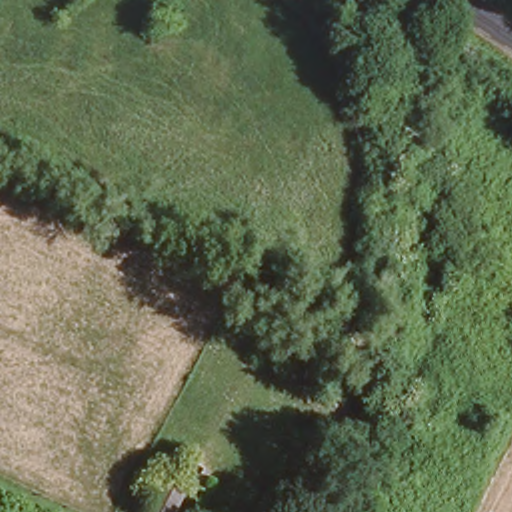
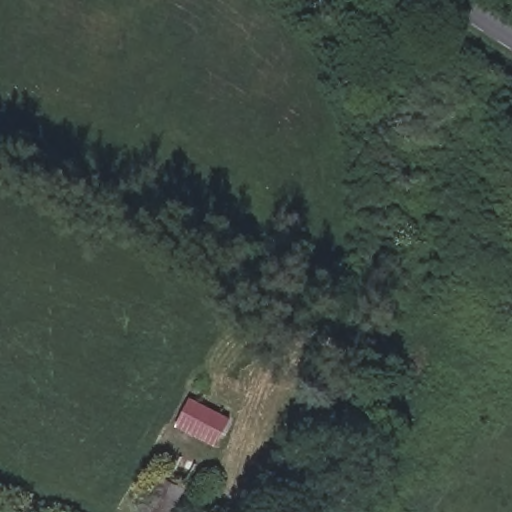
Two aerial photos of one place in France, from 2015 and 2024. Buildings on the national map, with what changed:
new [(232,419),(216,449),(177,427),(192,398),(232,419)]
unchanged [(167,475),(191,487),(178,512),(149,512),(167,475)]

